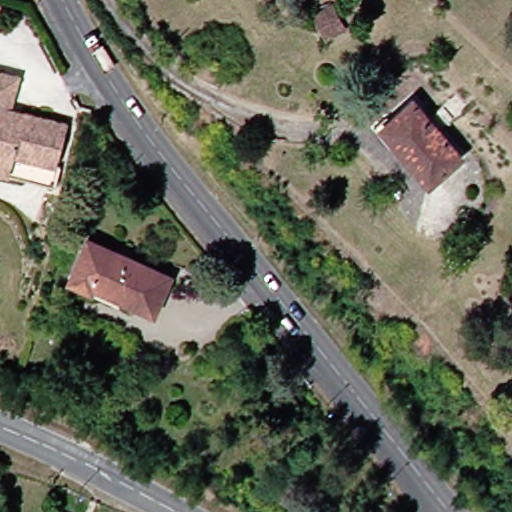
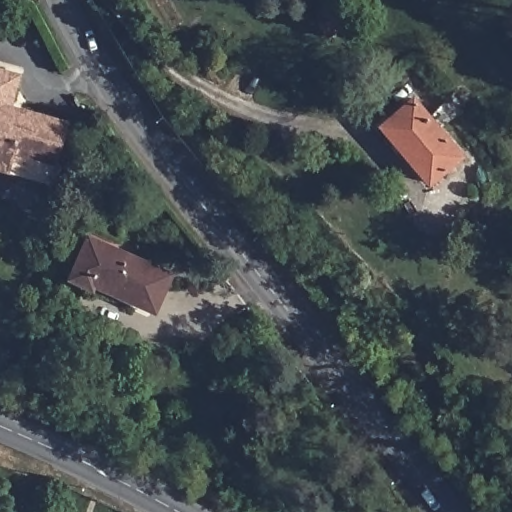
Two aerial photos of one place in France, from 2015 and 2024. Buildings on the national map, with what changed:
unchanged [(331,0),(348,0),(351,5),(340,11),(345,19),(327,30),(316,9),(331,0)]
unchanged [(18,105),(75,121),(63,163),(69,165),(63,184),(0,167),(0,82),(23,88),(18,105)]
unchanged [(423,97),(472,154),(440,183),(391,125),(423,97)]
unchanged [(75,222),(90,229),(83,244),(67,238),(75,222)]
unchanged [(77,277),(96,235),(180,272),(162,310),(102,284),(100,288),(77,277)]

